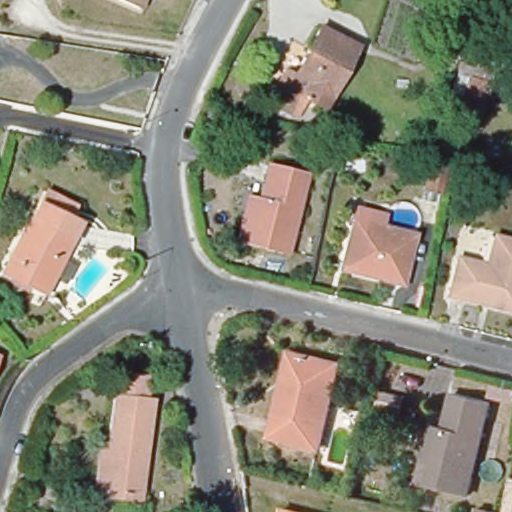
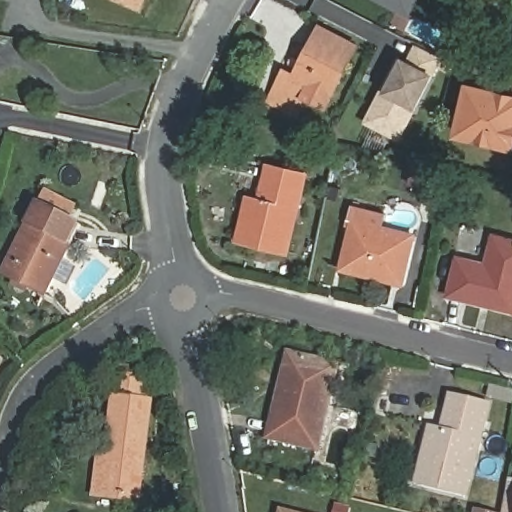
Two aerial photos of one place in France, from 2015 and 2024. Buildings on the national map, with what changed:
unchanged [(114,0),(142,0),(137,11),(114,0)]
new [(392,6),(382,0),(418,0),(410,15),(392,6)]
unchanged [(291,69),(302,75),(327,26),(363,45),(329,110),(312,101),(304,116),(275,100),(291,69)]
new [(382,92),(387,95),(395,81),(390,79),(398,61),(407,66),(417,47),(441,59),(400,140),(367,122),(382,92)]
new [(511,147),(457,135),(467,88),(496,95),(512,99),(512,147),(511,147)]
unchanged [(261,181),(266,162),(308,172),(287,256),(236,243),(247,196),(257,197),(261,181)]
unchanged [(428,187),(434,162),(449,166),(444,190),(428,187)]
unchanged [(70,239),(73,241),(47,293),(4,273),(37,204),(42,193),(75,209),(70,220),(77,224),(70,239)]
unchanged [(402,283),(342,268),(353,221),(414,235),(402,283)]
unchanged [(458,258),(488,266),(495,237),(512,241),(512,310),(450,295),(458,258)]
unchanged [(317,448),(269,436),(280,389),(287,353),(296,356),(337,365),(317,448)]
unchanged [(100,460),(107,461),(118,383),(149,386),(147,407),(152,408),(140,512),(131,512),(95,508),(100,460)]
unchanged [(445,435),(454,397),(490,407),(466,502),(417,490),(431,432),(445,435)]
unchanged [(478,510),(489,512),(478,512),(478,510)]
unchanged [(282,511),(288,512),(282,512),(282,511)]

